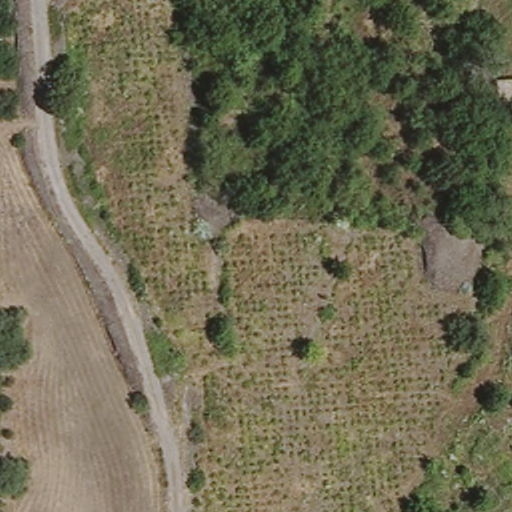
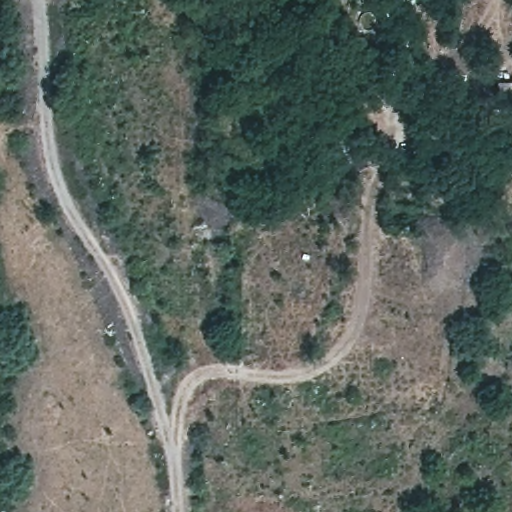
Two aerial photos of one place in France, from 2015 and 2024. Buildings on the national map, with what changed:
unchanged [(497,89),(512,91),(512,115),(495,114),(497,89)]

